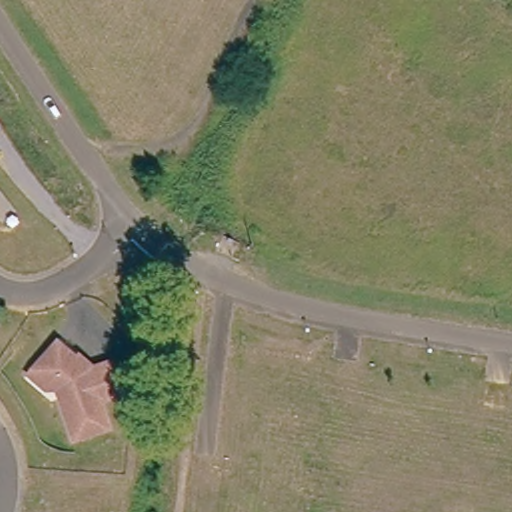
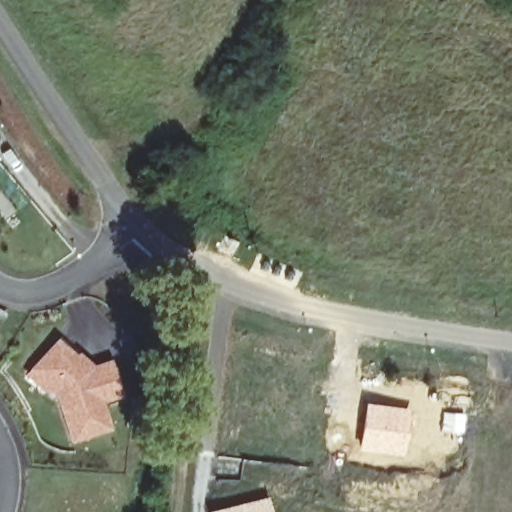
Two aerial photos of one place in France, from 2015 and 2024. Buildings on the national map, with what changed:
unchanged [(97,373),(119,368),(129,403),(108,409),(115,436),(80,445),(66,395),(51,392),(34,377),(39,372),(62,344),(97,373)]
new [(365,402),(410,408),(404,456),(358,450),(365,402)]
new [(266,494),(271,512),(206,512),(206,510),(266,494)]

